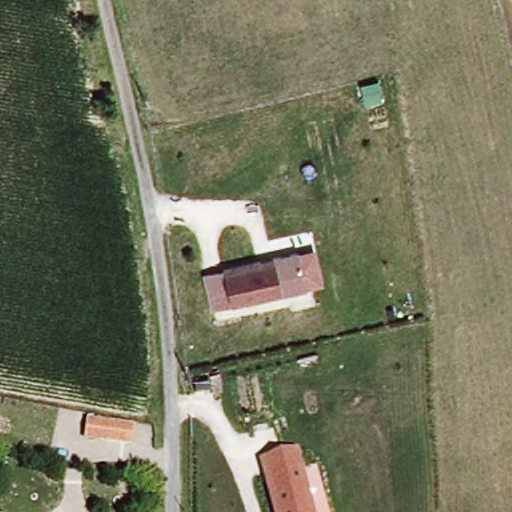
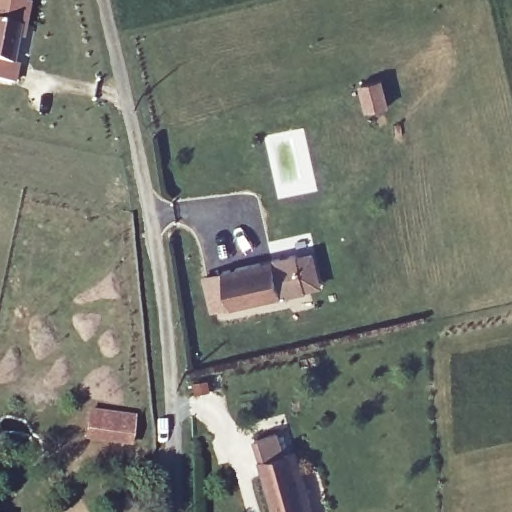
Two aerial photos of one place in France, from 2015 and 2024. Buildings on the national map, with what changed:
new [(16,39),(13,64),(18,65),(14,83),(0,80),(0,0),(12,0),(28,4),(23,41),(16,39)]
unchanged [(201,277),(222,273),(296,255),(304,290),(231,308),(209,312),(201,277)]
new [(133,427),(131,445),(83,438),(86,418),(133,427)]
unchanged [(258,459),(298,449),(315,512),(272,512),(258,459)]

